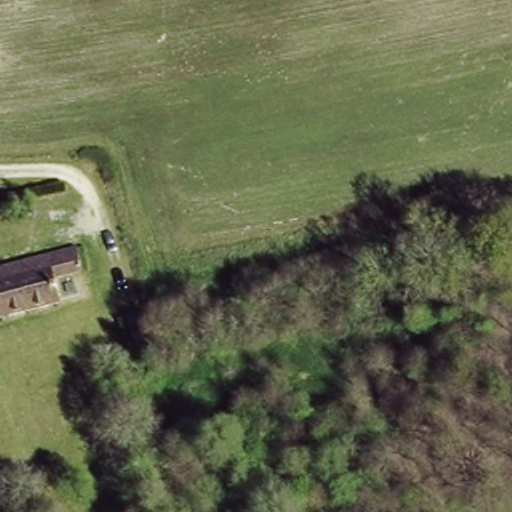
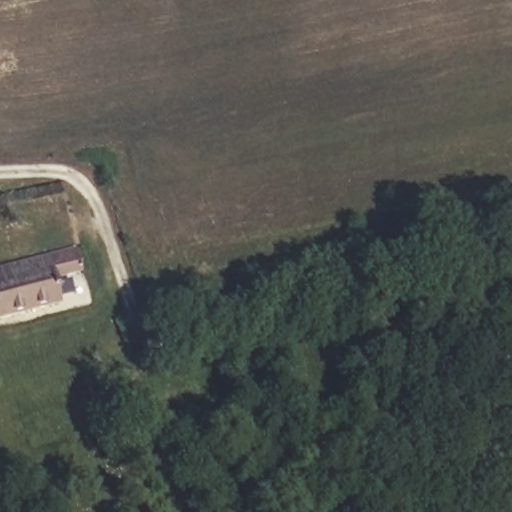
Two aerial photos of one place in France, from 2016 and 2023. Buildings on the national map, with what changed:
unchanged [(55,281),(61,302),(0,321),(0,270),(73,247),(82,274),(55,281)]
unchanged [(144,311),(155,343),(135,348),(127,316),(144,311)]

